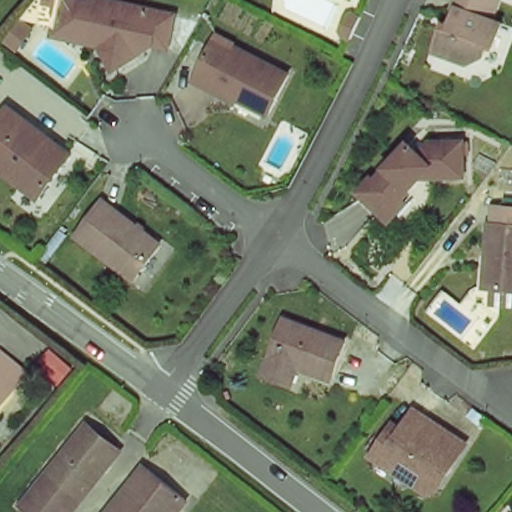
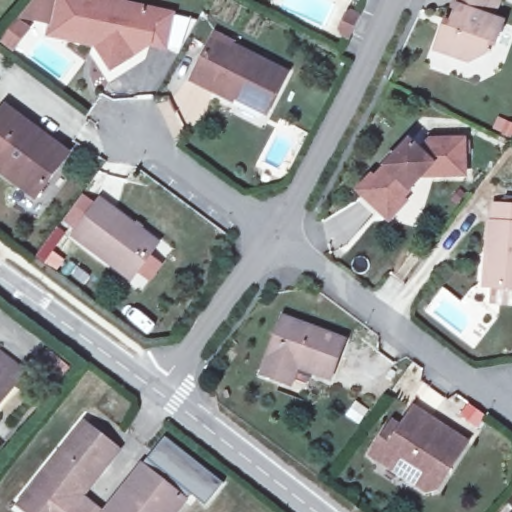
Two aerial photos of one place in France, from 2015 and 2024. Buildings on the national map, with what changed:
unchanged [(144,44),(126,56),(106,68),(86,44),(44,34),(49,7),(54,8),(56,0),(70,0),(84,3),(84,0),(102,0),(167,15),(160,47),(144,44)]
unchanged [(492,43),(487,41),(483,51),(466,59),(434,47),(442,24),(452,27),(454,20),(450,19),(455,5),(451,3),(452,0),(486,0),(495,0),(489,16),(500,20),(492,43)]
unchanged [(351,35),(343,32),(340,26),(348,10),(354,9),(361,12),(351,35)]
unchanged [(12,45),(0,37),(0,35),(13,16),(26,25),(12,45)]
unchanged [(228,95),(192,76),(211,38),(230,47),(233,41),(288,70),(268,110),(236,94),(233,98),(228,95)]
unchanged [(0,169),(0,107),(4,101),(68,150),(34,195),(0,169)]
unchanged [(392,214),(381,205),(360,184),(374,170),(376,172),(412,135),(422,146),(433,135),(465,144),(456,178),(424,169),(402,192),(407,197),(392,214)]
unchanged [(103,255),(73,233),(100,197),(158,241),(134,273),(131,277),(103,255)]
unchanged [(489,257),(492,223),(496,223),(497,203),(512,204),(512,289),(492,287),(487,287),(489,257)]
unchanged [(294,365),(287,384),(264,375),(284,317),(346,341),(331,380),(294,365)]
unchanged [(0,402),(0,352),(24,371),(0,402)]
unchanged [(428,494),(425,492),(373,457),(393,427),(402,433),(416,410),(469,445),(451,476),(441,492),(428,494)]
unchanged [(72,512),(33,512),(19,500),(84,421),(115,447),(78,493),(84,498),(72,512)]
unchanged [(191,496),(178,512),(105,512),(102,510),(144,458),(191,496)]

